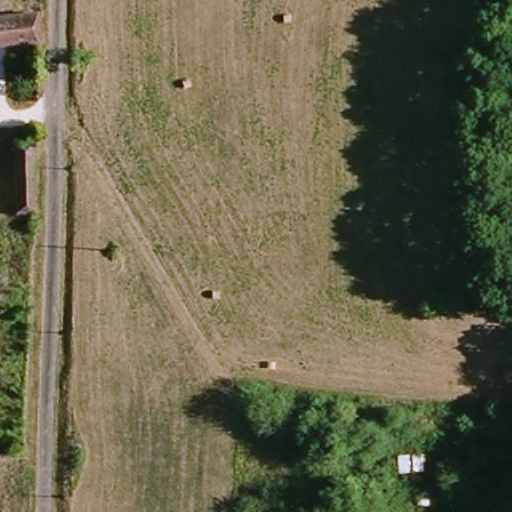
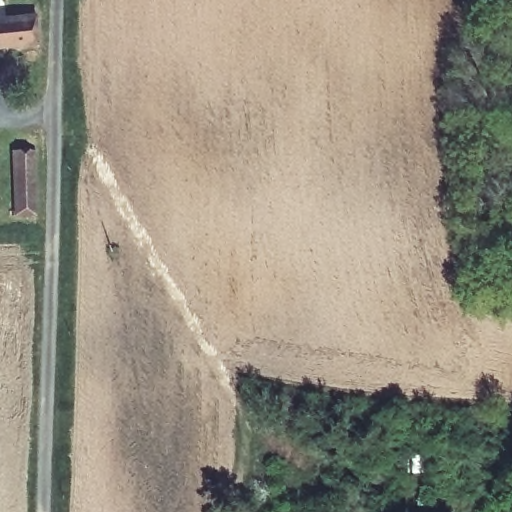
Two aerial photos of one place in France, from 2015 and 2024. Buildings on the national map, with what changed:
unchanged [(34,15),(34,48),(0,50),(0,18),(34,15)]
unchanged [(10,212),(8,148),(33,148),(35,212),(10,212)]

